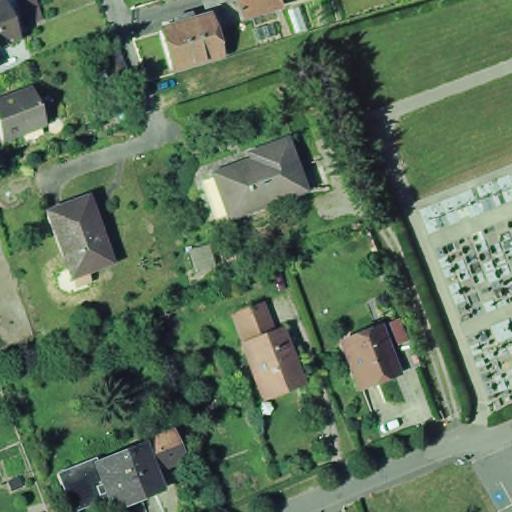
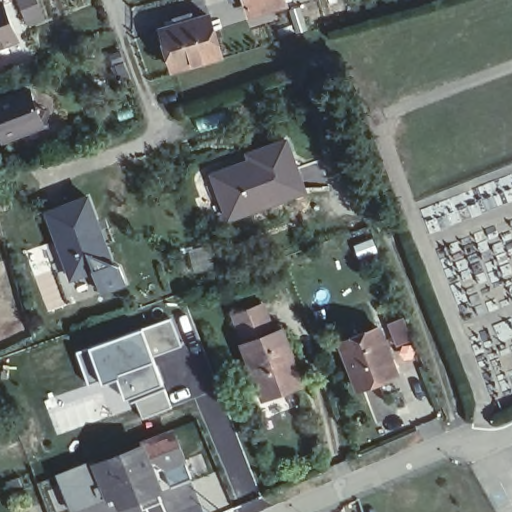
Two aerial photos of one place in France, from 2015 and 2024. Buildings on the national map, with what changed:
unchanged [(26,24),(17,0),(35,0),(42,18),(26,24)]
unchanged [(251,26),(246,8),(231,11),(227,0),(287,0),(289,16),(251,26)]
unchanged [(220,60),(173,75),(161,35),(176,31),(174,23),(191,17),(193,26),(210,21),(220,60)]
unchanged [(43,108),(38,126),(2,141),(0,135),(0,100),(29,89),(35,104),(43,108)]
unchanged [(304,196),(229,222),(214,178),(240,168),(241,171),(252,168),(249,159),(261,155),(286,146),(304,196)]
unchanged [(89,203),(112,270),(71,284),(48,217),(89,203)]
unchanged [(299,392),(259,407),(236,350),(240,349),(235,335),(229,320),(259,309),(264,324),(269,338),(276,335),(299,392)]
new [(171,316),(183,345),(154,357),(172,406),(141,419),(133,401),(128,403),(116,380),(101,385),(100,383),(88,386),(75,351),(171,316)]
unchanged [(376,334),(394,382),(358,396),(340,347),(376,334)]
unchanged [(106,495),(94,499),(95,505),(75,512),(73,512),(58,474),(96,459),(98,464),(143,445),(175,433),(185,461),(165,469),(156,464),(153,458),(148,460),(161,491),(121,506),(114,492),(109,494),(111,498),(108,499),(106,495)]

